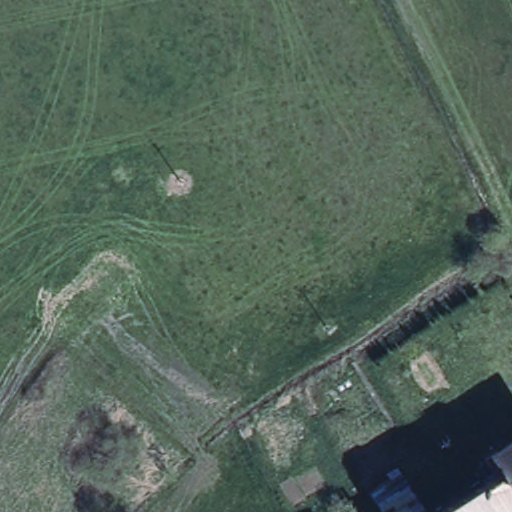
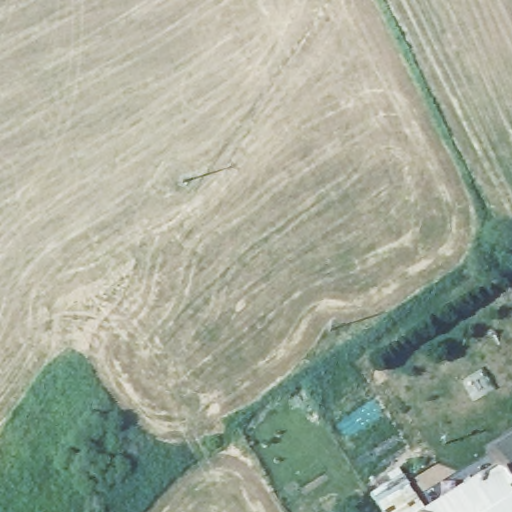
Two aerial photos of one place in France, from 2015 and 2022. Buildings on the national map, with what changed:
unchanged [(512,441),(512,505),(495,478),(483,459),(512,441)]
unchanged [(425,512),(381,512),(370,493),(402,475),(425,512)]
unchanged [(512,505),(512,512),(441,512),(495,478),(512,505)]

